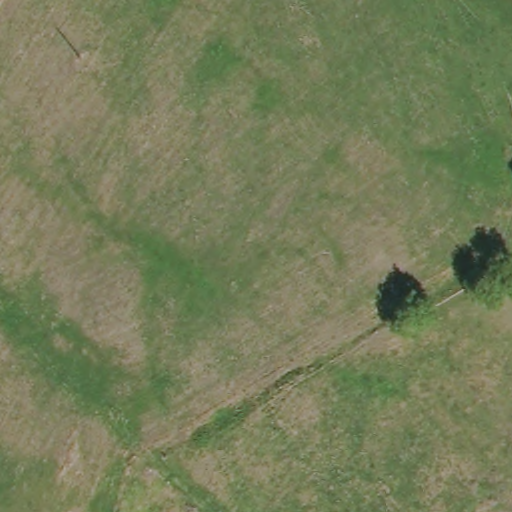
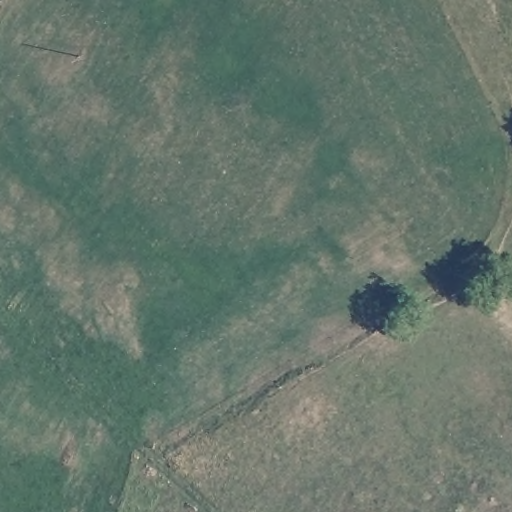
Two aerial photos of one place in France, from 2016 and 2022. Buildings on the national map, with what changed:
unchanged [(375,102),(388,94),(400,115),(387,122),(375,102)]

